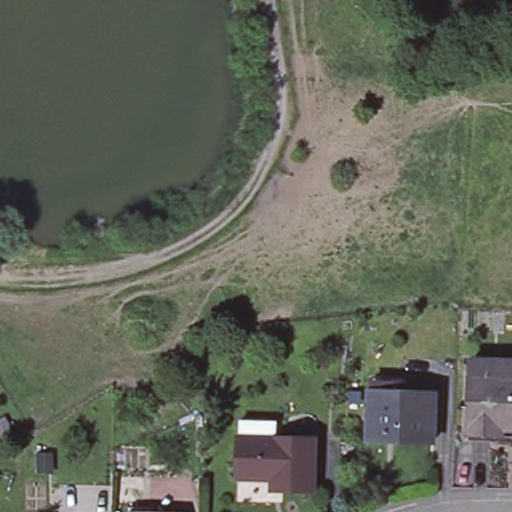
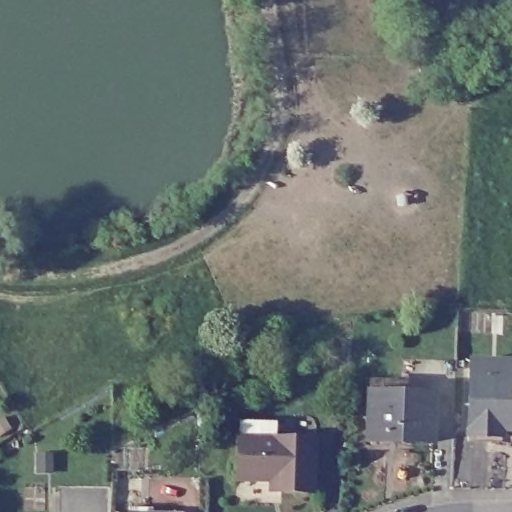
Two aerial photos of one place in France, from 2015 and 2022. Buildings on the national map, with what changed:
unchanged [(494,439),(462,438),(464,371),(466,356),(508,358),(507,373),(512,374),(512,424),(495,423),(494,439)]
unchanged [(433,453),(394,452),(394,443),(368,442),(370,400),(371,391),(408,392),(407,402),(436,404),(433,453)]
unchanged [(239,418),(275,420),(274,436),(314,438),(311,488),(271,486),(271,476),(236,475),(238,433),(239,418)]

